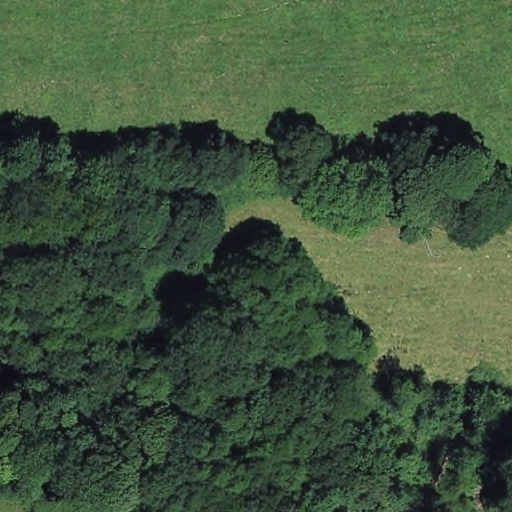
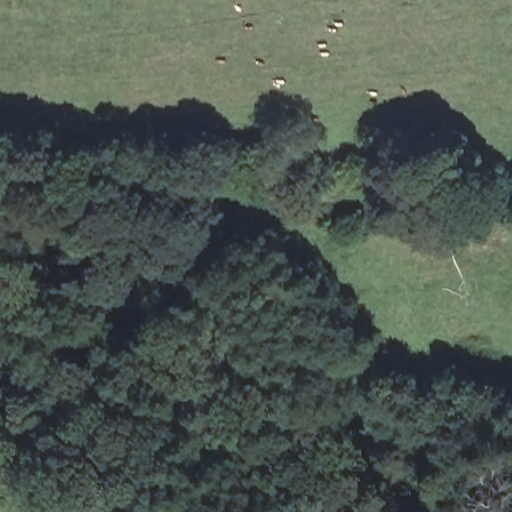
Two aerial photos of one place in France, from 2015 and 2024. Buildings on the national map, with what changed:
[]

